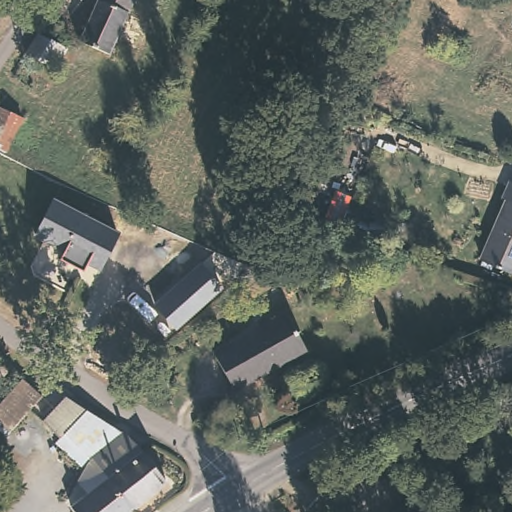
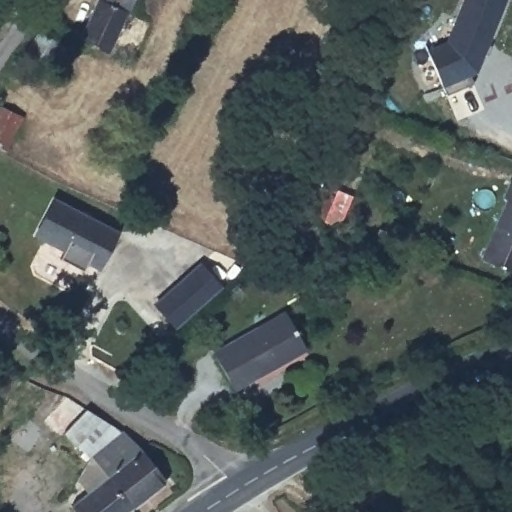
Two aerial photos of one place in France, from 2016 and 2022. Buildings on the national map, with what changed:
unchanged [(136,0),(108,63),(77,49),(97,0),(136,0)]
new [(463,0),(505,0),(476,72),(470,75),(472,82),(446,95),(443,87),(426,49),(445,41),(463,0)]
unchanged [(65,49),(55,70),(23,55),(34,34),(65,49)]
unchanged [(19,120),(0,153),(0,109),(19,120)]
unchanged [(499,195),(506,196),(510,182),(512,182),(512,271),(477,259),(499,195)]
unchanged [(89,253),(82,266),(60,255),(65,246),(35,231),(54,195),(119,228),(105,256),(102,260),(89,253)]
unchanged [(156,310),(199,266),(222,290),(180,332),(156,310)]
unchanged [(283,309),(306,350),(235,390),(211,350),(283,309)]
unchanged [(0,419),(0,396),(35,365),(54,382),(8,426),(0,419)]
unchanged [(64,435),(63,436),(60,440),(59,439),(43,423),(67,399),(86,412),(122,435),(124,433),(165,480),(129,511),(101,480),(84,455),(64,435)]
unchanged [(129,511),(128,512),(75,512),(70,506),(97,484),(101,480),(129,511)]

